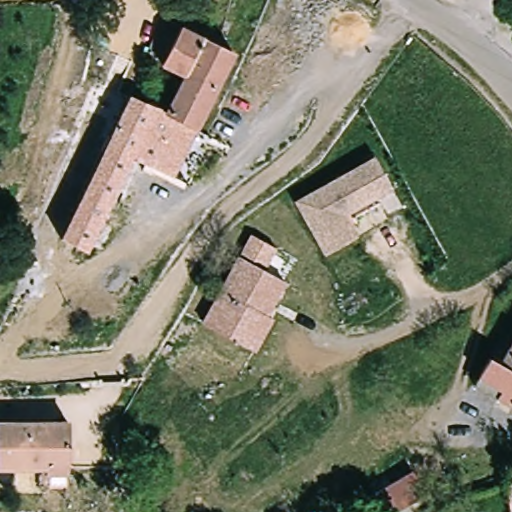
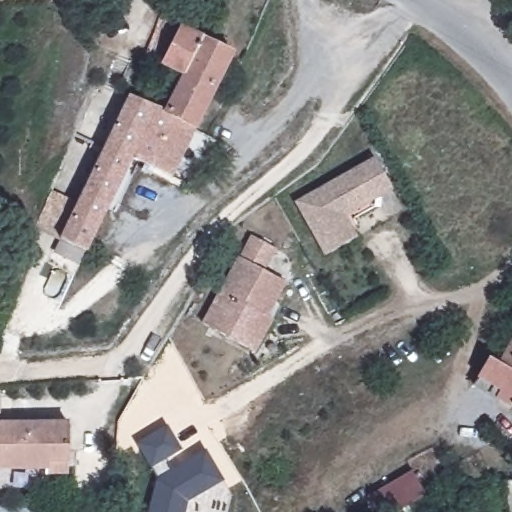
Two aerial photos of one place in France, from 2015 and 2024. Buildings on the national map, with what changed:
unchanged [(167,110),(182,74),(160,64),(180,22),(240,50),(200,129),(175,176),(132,156),(157,106),(167,110)]
unchanged [(132,156),(135,158),(87,253),(60,239),(130,95),(157,106),(132,156)]
unchanged [(325,256),(293,201),(375,155),(394,189),(379,197),(347,216),(358,237),(325,256)]
unchanged [(257,353),(250,349),(202,323),(251,234),(277,249),(265,270),(287,282),(268,315),(275,319),(257,353)]
unchanged [(477,371),(490,351),(499,358),(512,339),(512,403),(510,406),(490,392),(470,379),(477,371)]
unchanged [(45,464),(0,463),(0,419),(53,420),(71,421),(70,440),(70,460),(69,475),(44,474),(45,464)]
new [(186,512),(150,512),(157,480),(138,444),(168,426),(182,451),(162,463),(168,473),(206,451),(225,481),(188,503),(186,512)]
unchanged [(415,473),(427,498),(400,512),(379,512),(371,495),(415,473)]

